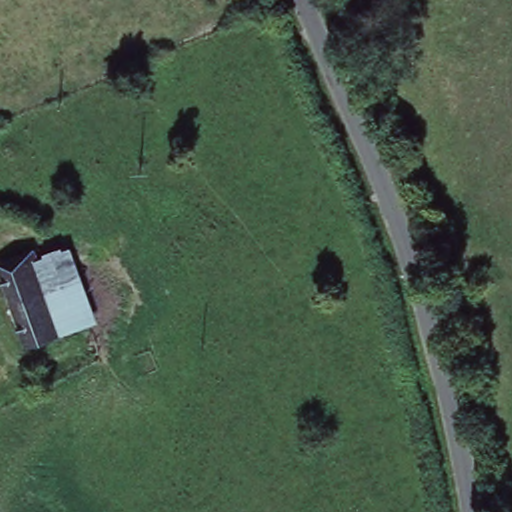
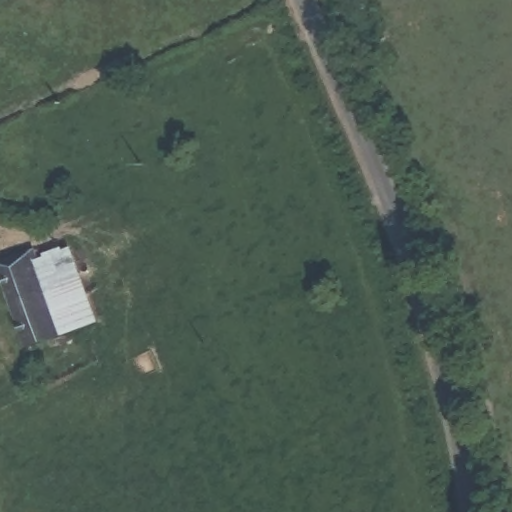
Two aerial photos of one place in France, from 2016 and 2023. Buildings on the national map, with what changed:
unchanged [(61,335),(28,347),(0,272),(0,266),(30,253),(35,265),(61,335)]
unchanged [(62,254),(90,324),(61,335),(35,265),(62,254)]

